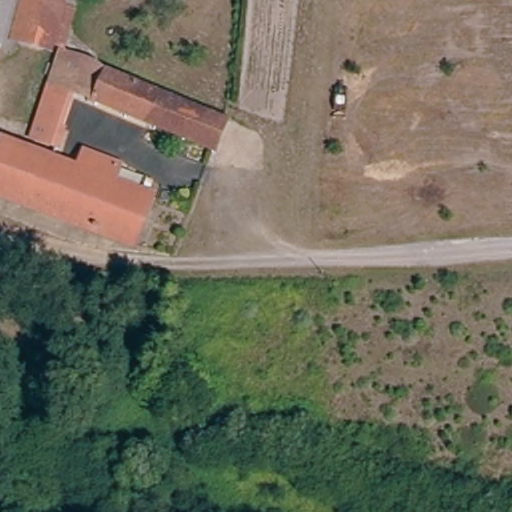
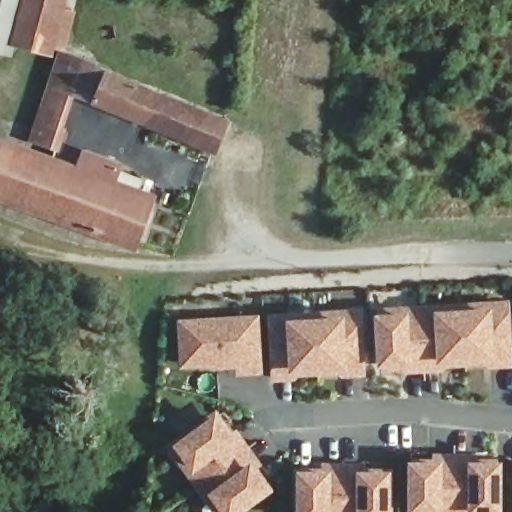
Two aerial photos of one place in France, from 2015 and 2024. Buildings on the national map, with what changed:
unchanged [(48,53),(11,42),(7,54),(0,52),(0,0),(62,0),(48,53)]
unchanged [(213,152),(71,92),(55,130),(60,132),(54,150),(30,140),(60,58),(224,126),(213,152)]
unchanged [(0,157),(3,146),(78,173),(84,158),(115,169),(109,186),(148,201),(131,246),(0,201),(0,157)]
new [(510,298),(512,323),(512,364),(486,367),(486,362),(443,364),(443,370),(409,373),(409,367),(379,369),(378,365),(376,312),(408,310),(407,305),(436,302),(436,308),(489,305),(490,299),(510,298)]
new [(288,317),(344,315),(344,308),(362,307),(365,375),(342,377),(341,372),(293,376),(293,379),(272,379),(269,314),(288,313),(288,317)]
new [(262,373),(236,375),(235,364),(180,366),(178,318),(258,314),(262,373)]
new [(264,464),(259,468),(272,487),(238,512),(213,512),(166,443),(172,440),(216,410),(231,432),(238,427),(264,464)]
new [(502,512),(407,512),(407,459),(440,458),(440,452),(468,451),(468,459),(502,459),(502,512)]
new [(392,512),(296,512),(295,468),(330,468),(331,460),(358,460),(357,469),(391,469),(392,512)]

